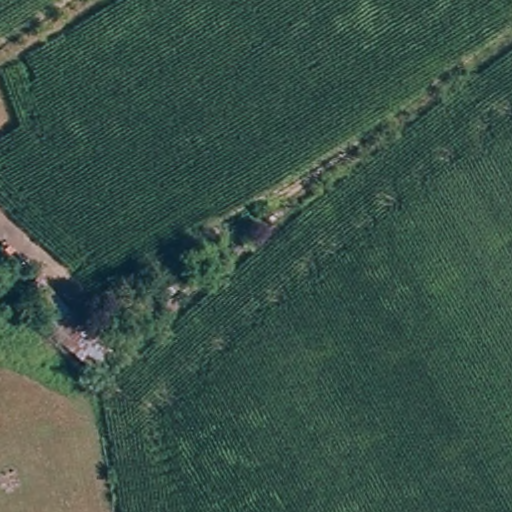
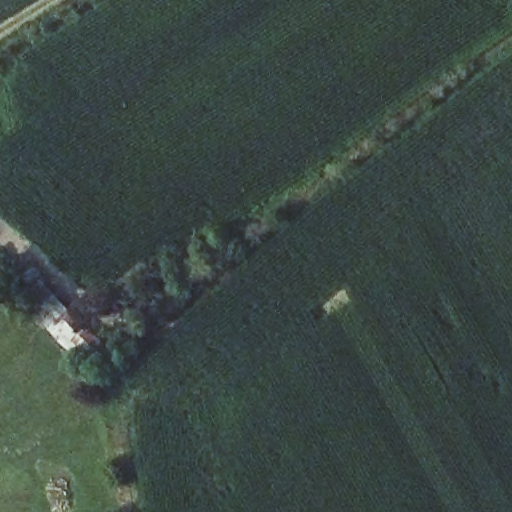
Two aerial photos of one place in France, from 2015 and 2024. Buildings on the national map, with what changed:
unchanged [(84,360),(32,308),(53,290),(101,342),(84,360)]

